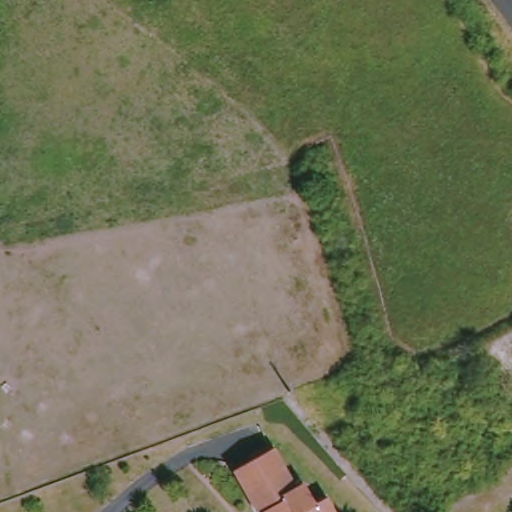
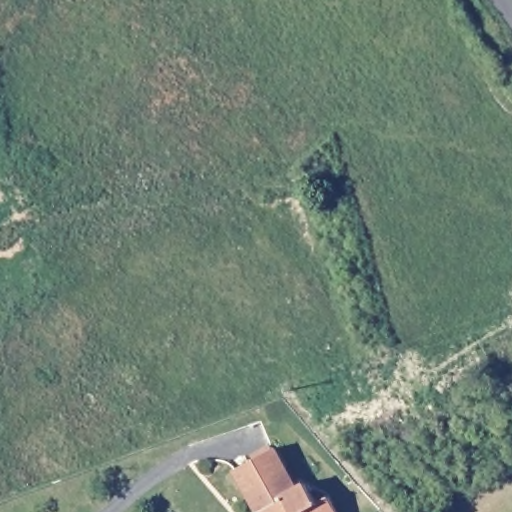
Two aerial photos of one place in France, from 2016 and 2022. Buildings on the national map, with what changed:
unchanged [(259,510),(255,512),(254,512),(230,469),(267,447),(291,486),(299,482),(312,503),(322,497),(332,512),(259,512),(259,510)]

